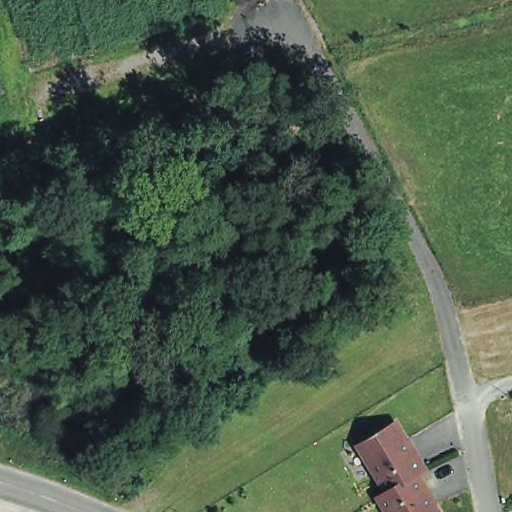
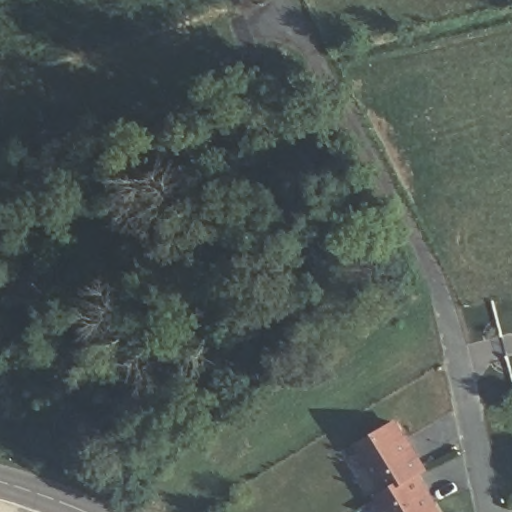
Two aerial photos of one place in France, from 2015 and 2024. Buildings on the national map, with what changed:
unchanged [(358,450),(393,427),(422,473),(413,479),(387,495),(358,450)]
unchanged [(387,495),(413,479),(434,512),(385,512),(378,501),(387,495)]

